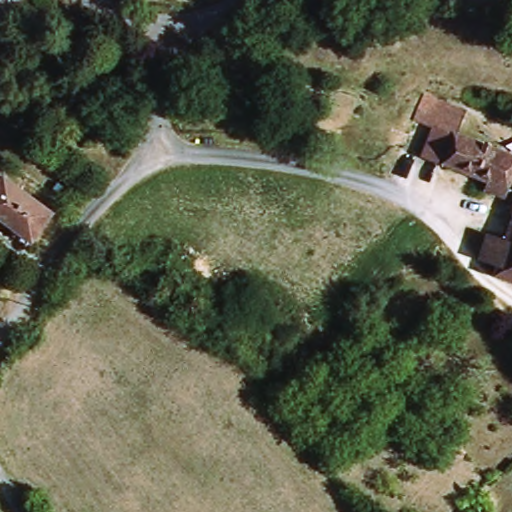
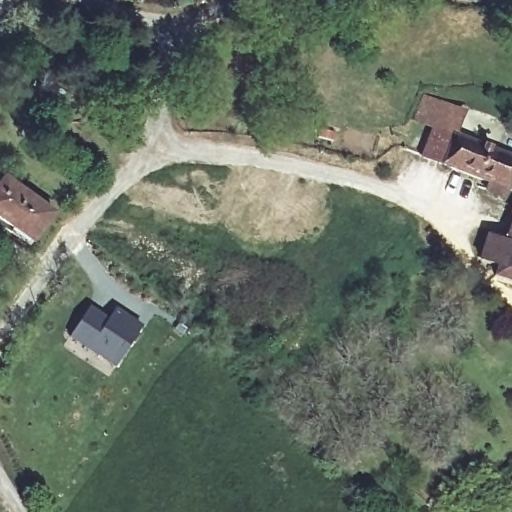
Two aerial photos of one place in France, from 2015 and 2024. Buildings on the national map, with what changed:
unchanged [(509,195),(421,160),(430,141),(437,129),(450,135),(487,150),(512,160),(512,186),(509,195)]
unchanged [(31,247),(0,225),(0,180),(3,175),(56,214),(31,247)]
unchanged [(488,271),(490,263),(482,261),(491,235),(510,242),(512,243),(512,279),(488,271)]
new [(143,325),(115,367),(68,337),(90,306),(110,318),(117,308),(143,325)]

